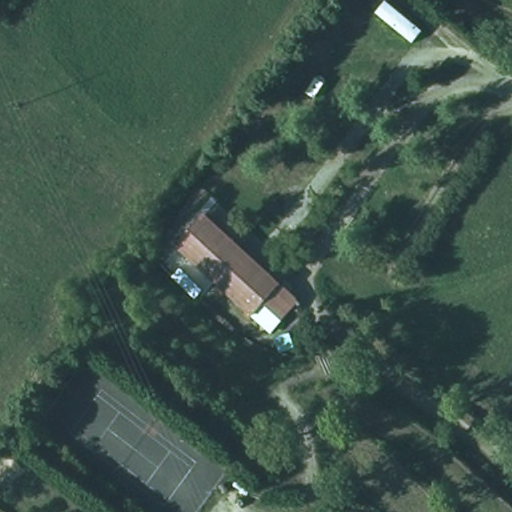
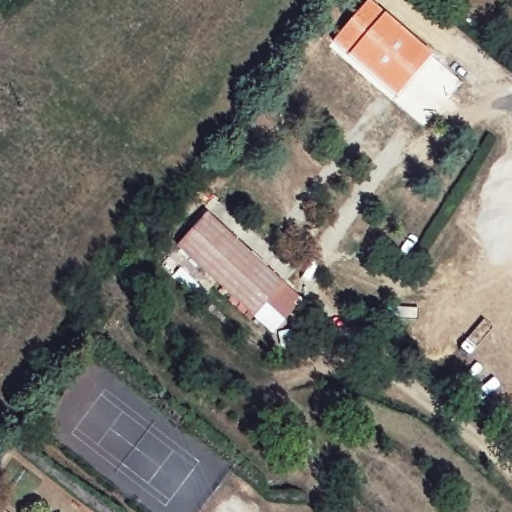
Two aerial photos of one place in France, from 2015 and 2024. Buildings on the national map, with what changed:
new [(370,0),(432,55),(394,97),(332,41),(368,0),(370,0)]
new [(432,55),(462,81),(425,126),(394,97),(432,55)]
unchanged [(306,304),(274,335),(178,245),(210,213),(306,304)]

